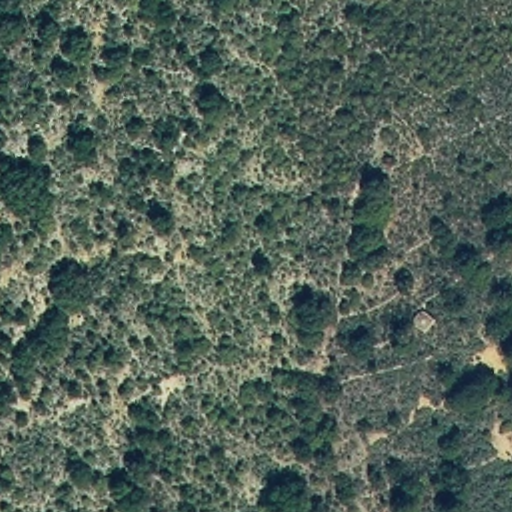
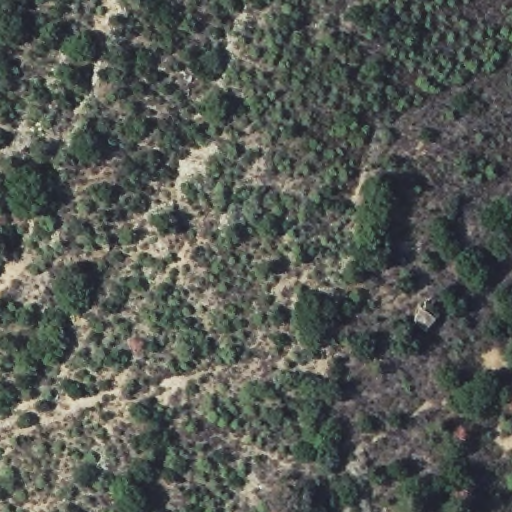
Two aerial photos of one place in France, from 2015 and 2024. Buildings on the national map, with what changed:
unchanged [(414,319),(425,305),(439,317),(425,331),(414,319)]

